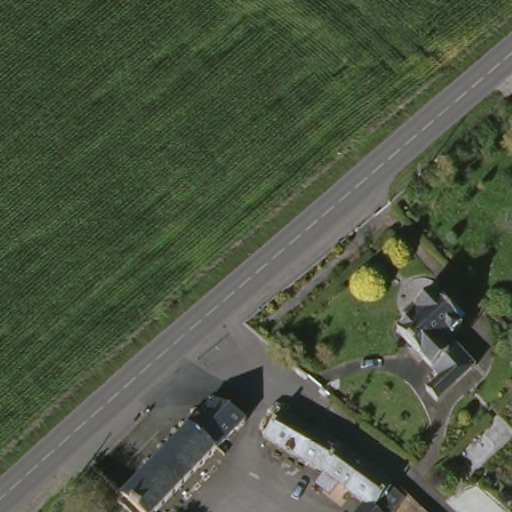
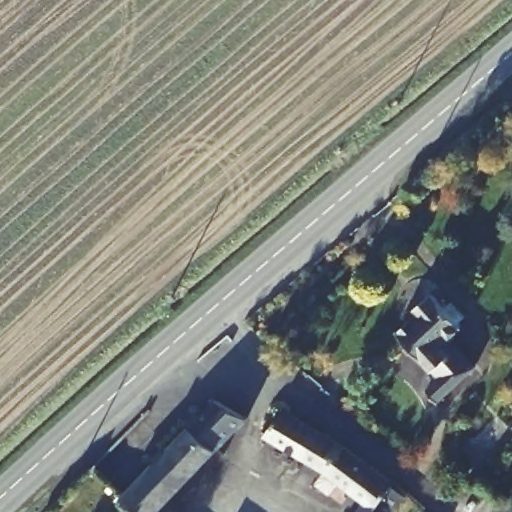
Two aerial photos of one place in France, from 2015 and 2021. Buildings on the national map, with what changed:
unchanged [(424,310),(422,308),(438,291),(467,326),(455,337),(483,367),(443,402),(431,389),(443,378),(403,333),(424,310)]
unchanged [(255,421),(249,427),(169,512),(145,512),(130,496),(223,400),(255,421)]
unchanged [(346,484),(335,476),(325,470),(271,436),(273,433),(276,430),(290,411),(338,436),(362,453),(364,455),(402,483),(398,490),(411,501),(402,512),(366,512),(371,506),(346,484)]

